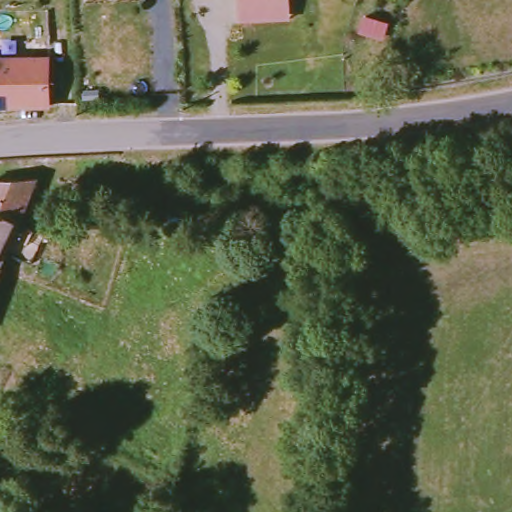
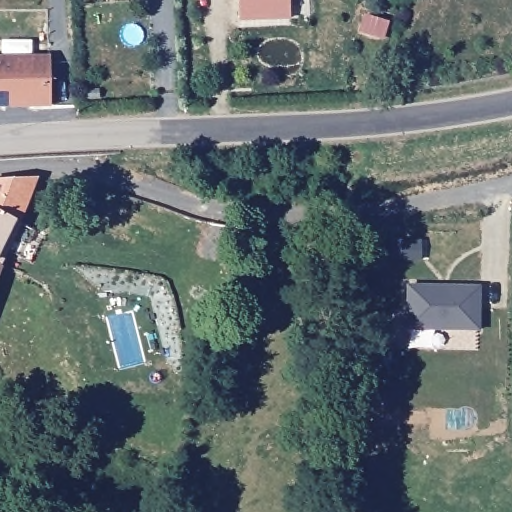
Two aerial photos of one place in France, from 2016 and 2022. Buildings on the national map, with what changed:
unchanged [(292,0),(293,22),(243,24),(241,0),(292,0)]
unchanged [(49,58),(49,105),(0,106),(0,59),(49,58)]
unchanged [(41,185),(20,227),(21,227),(3,271),(0,271),(0,186),(41,185)]
unchanged [(3,271),(5,273),(0,287),(0,271),(3,271)]
new [(407,284),(479,286),(479,331),(406,330),(407,284)]

